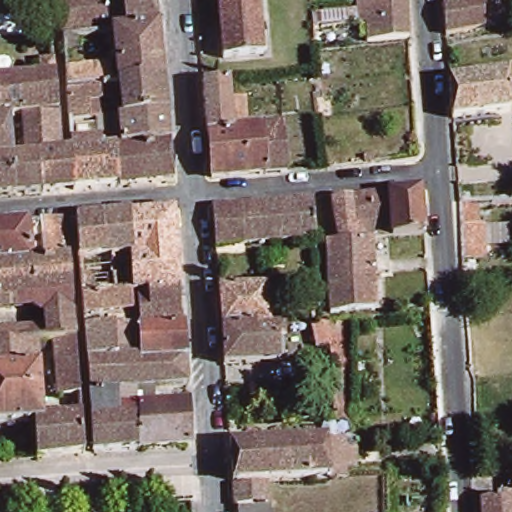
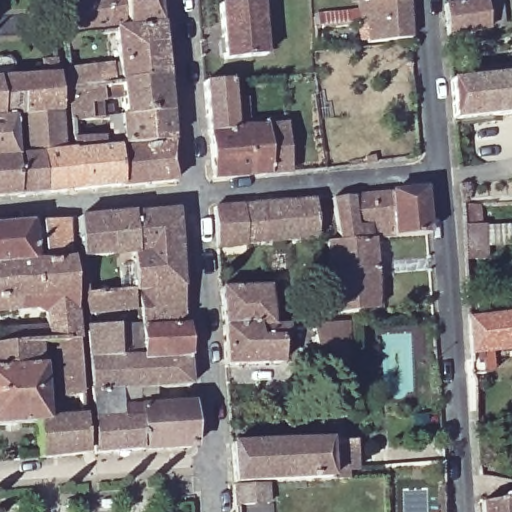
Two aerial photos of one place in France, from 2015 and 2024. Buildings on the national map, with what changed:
unchanged [(57,0),(156,0),(158,30),(112,34),(100,36),(100,45),(61,49),(61,39),(57,0)]
unchanged [(365,3),(365,0),(409,0),(412,40),(370,43),(368,28),(361,29),(314,29),(313,15),(359,13),(358,4),(365,3)]
unchanged [(485,27),(446,31),(444,4),(482,0),(485,27)]
unchanged [(217,5),(257,2),(261,54),(221,58),(217,5)]
unchanged [(163,84),(118,88),(116,88),(112,34),(158,30),(163,84)]
unchanged [(510,76),(512,99),(512,116),(453,121),(450,81),(510,76)]
unchanged [(40,196),(15,198),(0,200),(0,82),(52,77),(55,96),(56,117),(60,157),(63,194),(40,196)]
unchanged [(226,83),(231,133),(209,135),(206,135),(202,85),(226,83)]
unchanged [(118,88),(163,84),(166,122),(121,125),(118,88)]
unchanged [(110,152),(71,156),(68,130),(65,92),(80,91),(83,128),(107,127),(110,152)]
unchanged [(169,147),(113,152),(110,152),(107,127),(121,125),(166,122),(169,147)]
unchanged [(260,130),(262,156),(272,155),(273,171),(265,172),(265,177),(213,181),(209,135),(231,133),(260,130)]
unchanged [(171,183),(117,189),(113,152),(169,147),(171,183)]
unchanged [(75,193),(71,156),(110,152),(113,152),(117,189),(75,193)]
unchanged [(338,312),(330,313),(326,243),(333,243),(355,242),(351,199),(370,198),(421,194),(425,237),(372,241),(375,310),(338,312)]
unchanged [(213,206),(241,204),(259,202),(312,198),(315,239),(262,243),(245,244),(216,246),(213,206)]
unchanged [(463,257),(461,221),(461,202),(483,202),(483,221),(483,256),(463,257)]
unchanged [(88,294),(85,255),(82,217),(108,215),(136,213),(178,210),(184,287),(137,291),(127,291),(128,309),(90,312),(88,294)]
unchanged [(72,219),(76,259),(0,264),(0,224),(72,219)]
unchanged [(80,306),(0,313),(0,264),(76,259),(80,306)]
unchanged [(220,289),(265,285),(268,324),(222,327),(220,289)]
unchanged [(186,324),(140,328),(137,291),(184,287),(186,324)]
new [(512,352),(490,354),(492,372),(480,373),(478,355),(470,355),(466,316),(512,312),(512,352)]
unchanged [(287,358),(225,363),(222,327),(268,324),(285,322),(287,358)]
unchanged [(337,422),(332,347),(320,348),(317,325),(326,324),(331,324),(344,323),(350,427),(338,427),(337,422)]
unchanged [(81,324),(82,340),(60,341),(44,342),(0,345),(0,330),(81,324)]
unchanged [(186,324),(189,354),(141,357),(140,328),(186,324)]
unchanged [(95,389),(93,359),(90,326),(120,325),(122,358),(130,357),(141,357),(189,354),(190,386),(139,387),(95,389)]
unchanged [(82,340),(85,394),(63,394),(60,341),(82,340)]
unchanged [(44,342),(49,417),(40,418),(40,421),(0,424),(0,345),(44,342)]
unchanged [(139,387),(140,407),(143,450),(98,453),(95,389),(139,387)]
unchanged [(192,402),(195,446),(143,450),(140,407),(192,402)]
unchanged [(42,456),(40,421),(40,418),(49,417),(87,415),(90,453),(42,456)]
unchanged [(235,505),(233,485),(230,448),(355,443),(355,451),(356,470),(347,471),(347,478),(270,483),(270,502),(271,512),(236,512),(235,505)]
unchanged [(481,503),(512,501),(512,512),(482,512),(481,503)]

